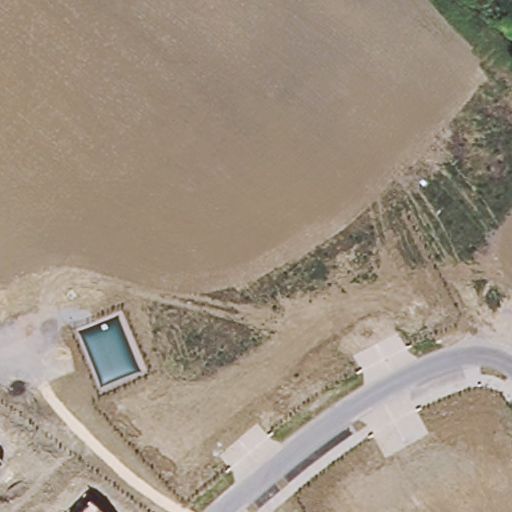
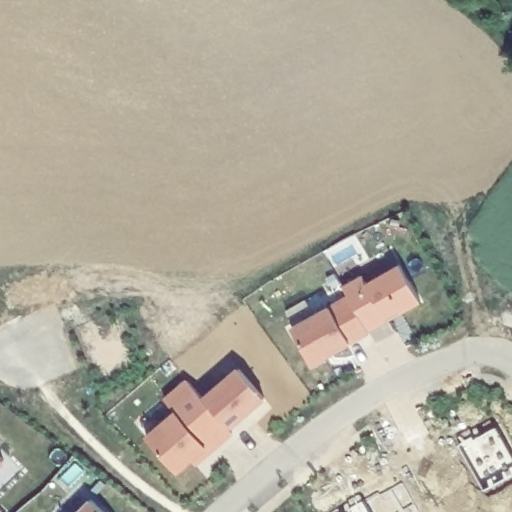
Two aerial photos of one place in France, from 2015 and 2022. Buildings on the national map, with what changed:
new [(291,326),(328,307),(349,296),(342,285),(364,275),(368,283),(401,266),(421,303),(401,314),(368,332),(369,335),(351,344),(311,365),(291,326)]
new [(146,435),(174,410),(163,398),(186,379),(203,398),(238,367),(266,400),(231,429),(234,435),(196,466),(192,460),(178,472),(146,435)]
unchanged [(3,462),(0,465),(0,459),(3,462)]
unchanged [(99,512),(78,512),(88,501),(99,512)]

